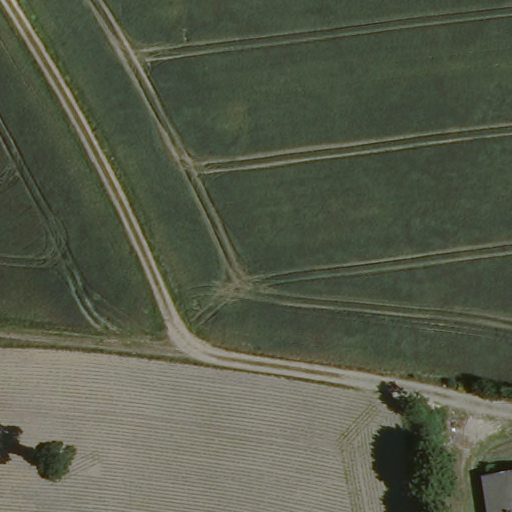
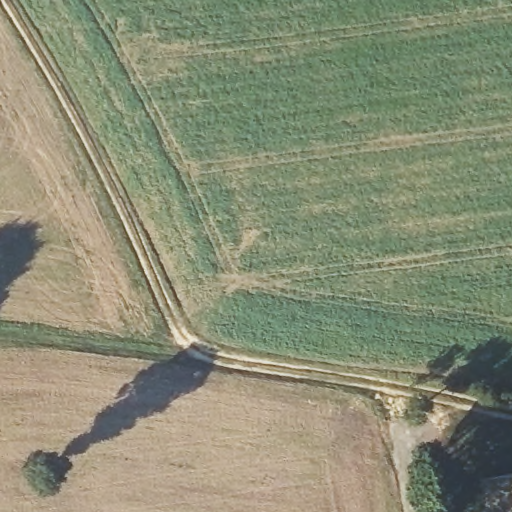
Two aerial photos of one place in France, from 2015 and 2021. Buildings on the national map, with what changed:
unchanged [(486,512),(481,482),(512,477),(512,512),(486,512)]

